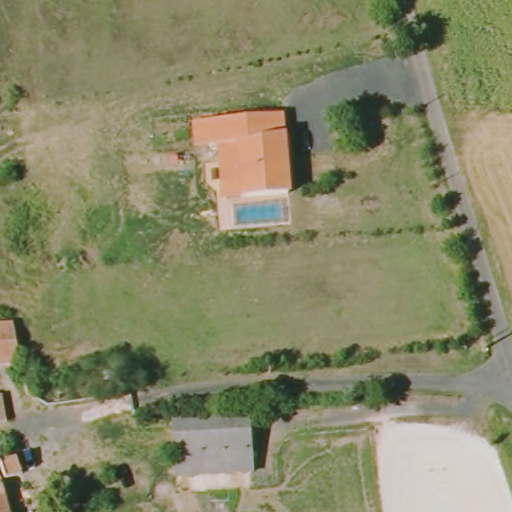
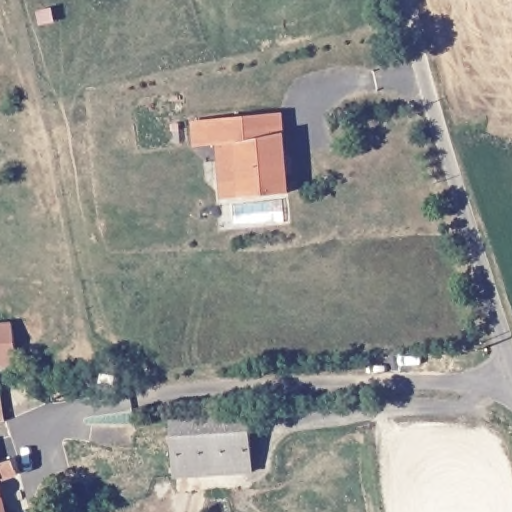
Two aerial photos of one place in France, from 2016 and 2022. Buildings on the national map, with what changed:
unchanged [(248,126),(278,123),(279,138),(285,198),(239,201),(234,142),(249,141),(248,126)]
unchanged [(9,317),(12,338),(14,358),(0,360),(0,318),(9,317)]
unchanged [(167,425),(243,418),(245,444),(171,451),(167,425)]
unchanged [(245,444),(247,470),(172,479),(171,451),(245,444)]
unchanged [(16,461),(17,473),(0,479),(0,464),(16,461)]
unchanged [(132,483),(113,486),(113,472),(131,470),(132,483)]
unchanged [(1,494),(5,512),(0,512),(0,490),(1,494)]

